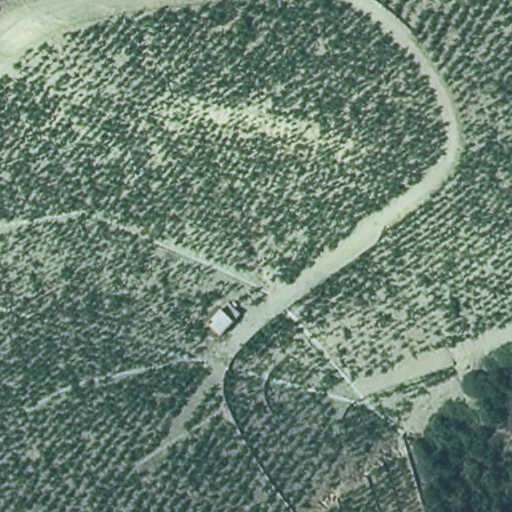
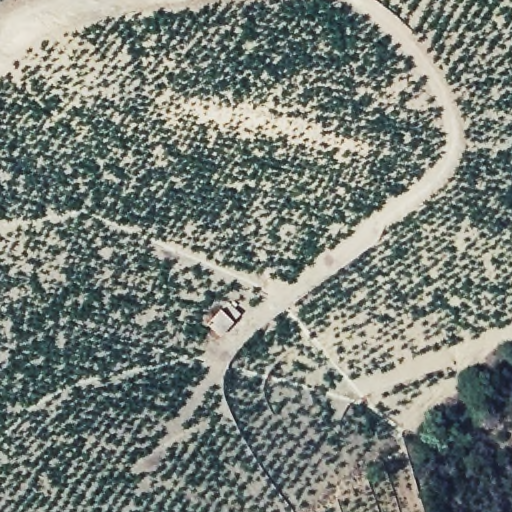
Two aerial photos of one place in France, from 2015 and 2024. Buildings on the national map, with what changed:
unchanged [(236,330),(221,342),(208,327),(223,312),(236,330)]

